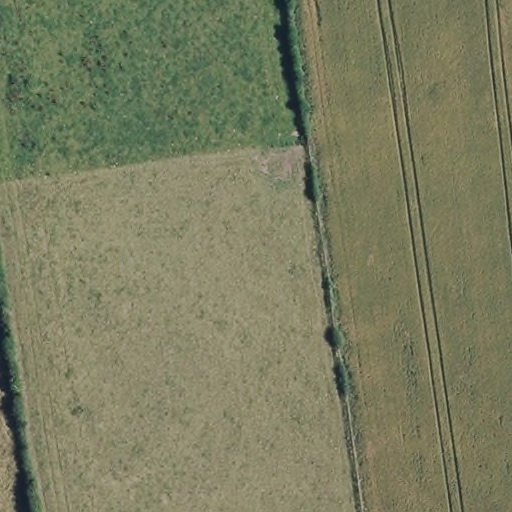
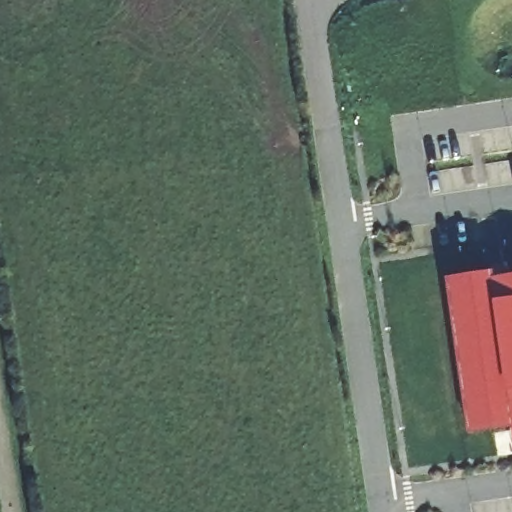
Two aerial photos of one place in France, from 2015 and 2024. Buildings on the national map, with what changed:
new [(512,463),(510,463),(509,431),(469,433),(449,281),(512,274),(512,463)]

